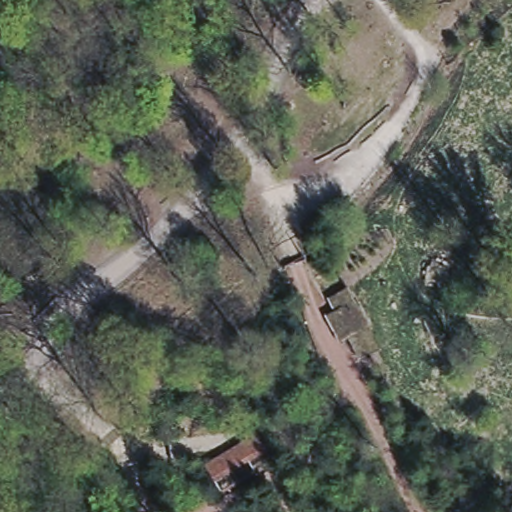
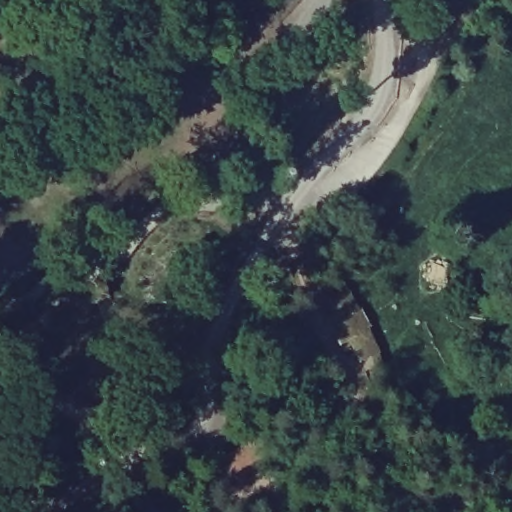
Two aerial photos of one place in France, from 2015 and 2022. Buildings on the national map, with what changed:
unchanged [(345,335),(367,322),(388,361),(360,370),(345,335)]
unchanged [(202,465),(247,441),(259,461),(215,488),(202,465)]

